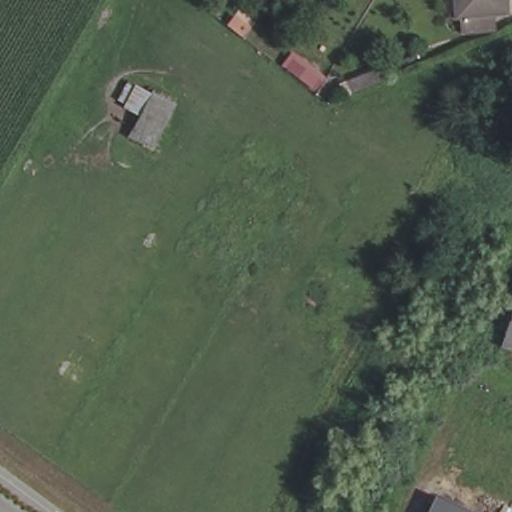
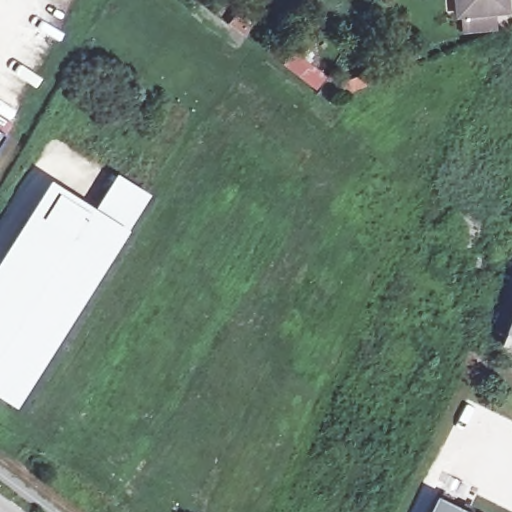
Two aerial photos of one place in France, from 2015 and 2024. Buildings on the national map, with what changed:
unchanged [(506,14),(495,14),(495,30),(462,30),(462,15),(455,14),(455,0),(506,0),(506,14)]
demolished [(129,136),(138,117),(120,108),(133,81),(182,100),(157,151),(129,136)]
new [(0,143),(0,133),(5,135),(0,143)]
new [(95,217),(121,233),(15,401),(0,392),(0,283),(57,192),(95,217)]
unchanged [(508,347),(512,336),(512,348),(508,347)]
unchanged [(430,512),(438,496),(471,512),(430,512)]

